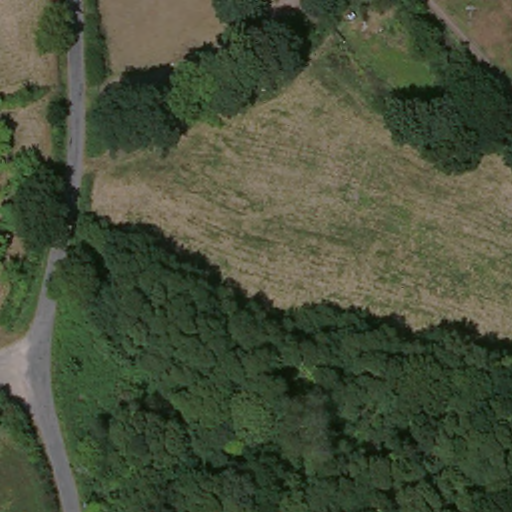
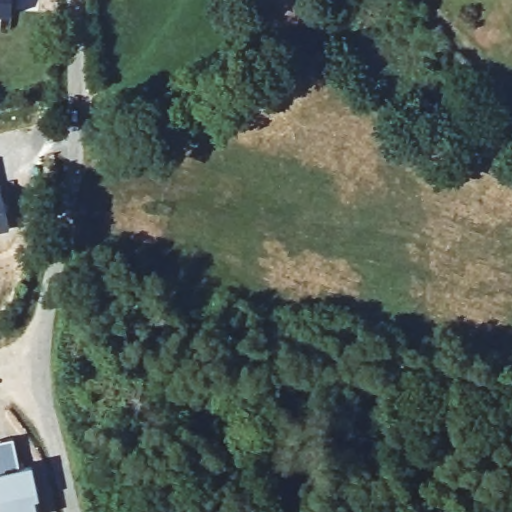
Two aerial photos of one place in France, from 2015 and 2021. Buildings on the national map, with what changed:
new [(17,0),(16,12),(0,11),(0,0),(17,0)]
new [(2,190),(12,228),(0,231),(0,190),(2,190)]
new [(2,506),(0,507),(0,443),(15,439),(21,470),(33,468),(39,498),(35,499),(37,512),(3,512),(2,506)]

